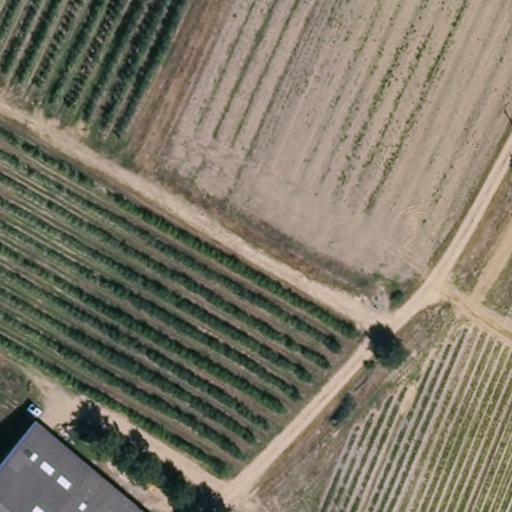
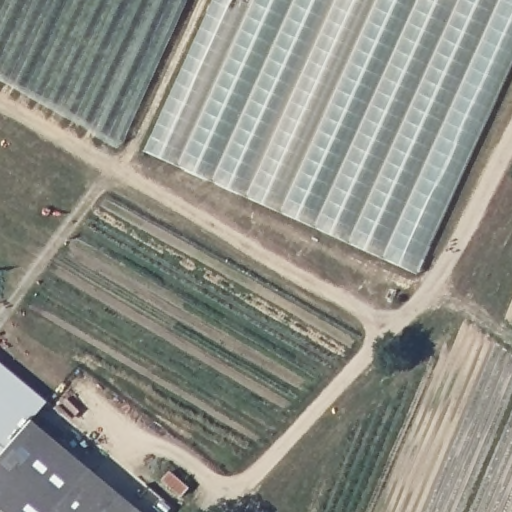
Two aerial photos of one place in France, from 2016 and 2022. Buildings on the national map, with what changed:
new [(146,151),(214,0),(512,0),(512,65),(417,274),(146,151)]
new [(0,360),(50,402),(34,423),(6,457),(0,453),(0,360)]
unchanged [(141,512),(0,512),(0,464),(34,423),(141,512)]

